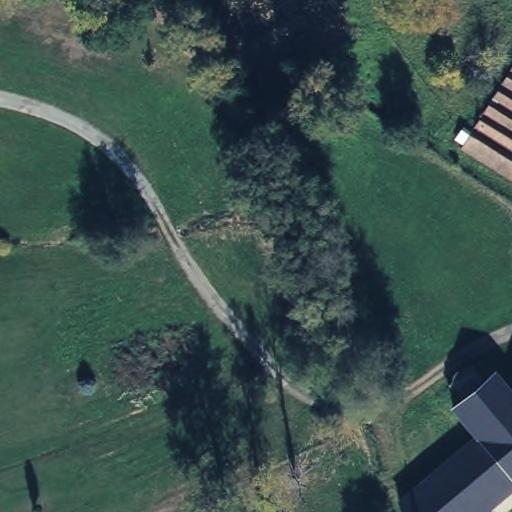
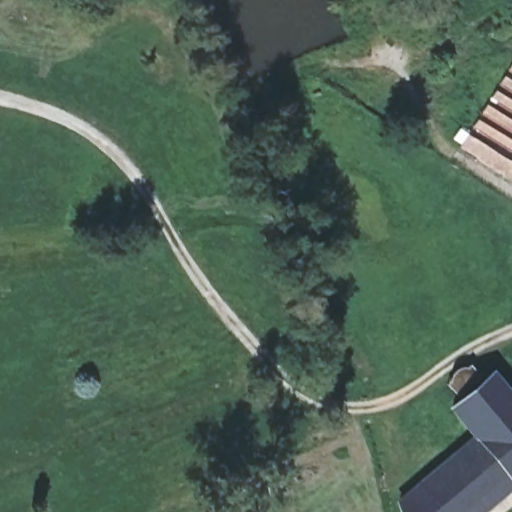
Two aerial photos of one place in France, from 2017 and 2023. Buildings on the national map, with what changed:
unchanged [(512,171),(462,139),(512,59),(512,171)]
unchanged [(507,475),(463,512),(398,512),(396,505),(412,492),(401,480),(416,467),(427,479),(477,437),(452,407),(492,375),(512,400),(512,476),(510,478),(507,475)]

